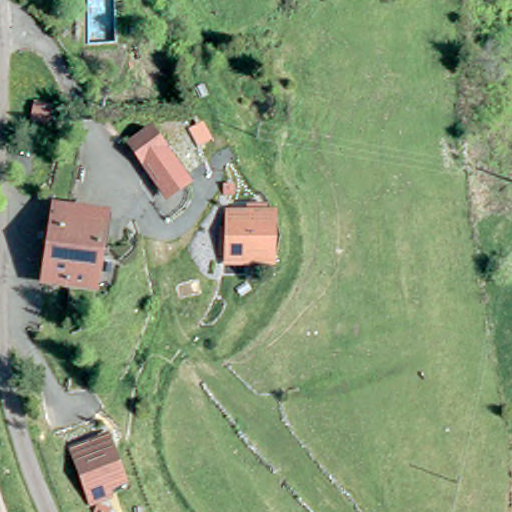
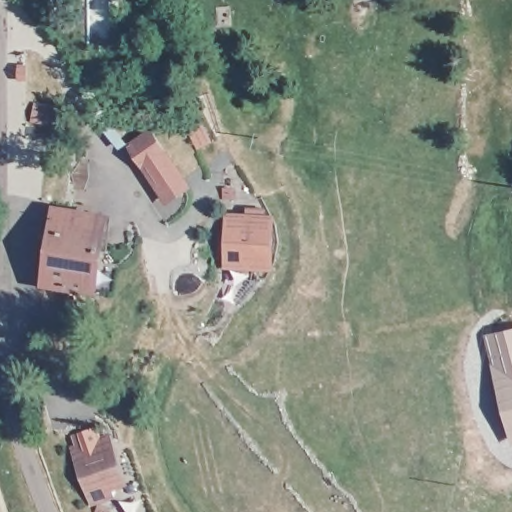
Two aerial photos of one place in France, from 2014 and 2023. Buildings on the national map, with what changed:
unchanged [(195,185),(166,203),(124,141),(151,125),(195,185)]
unchanged [(277,212),(277,268),(222,266),(223,207),(277,212)]
unchanged [(87,283),(42,277),(54,208),(103,216),(99,241),(92,283),(87,283)]
new [(482,336),(512,328),(512,446),(511,447),(482,336)]
unchanged [(105,472),(108,482),(92,487),(73,436),(99,427),(107,425),(111,438),(121,467),(105,472)]

